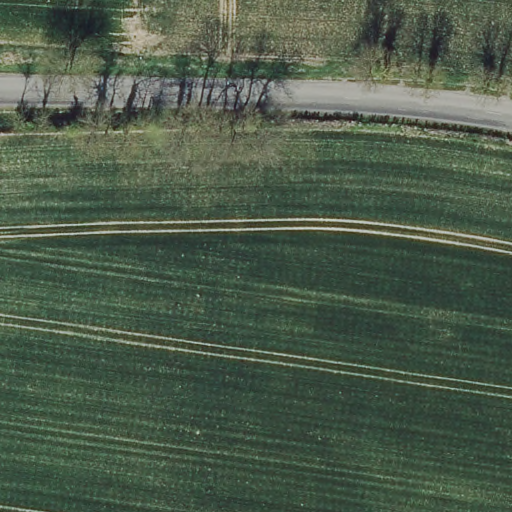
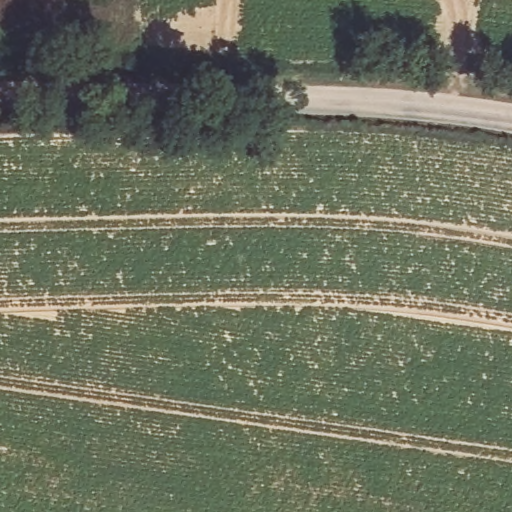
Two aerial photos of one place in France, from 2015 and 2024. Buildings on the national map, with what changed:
[]

